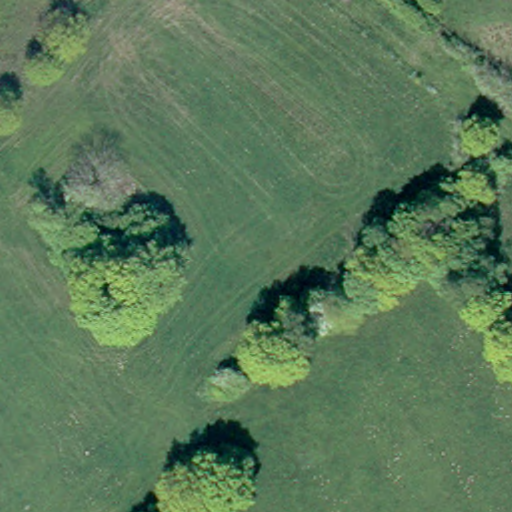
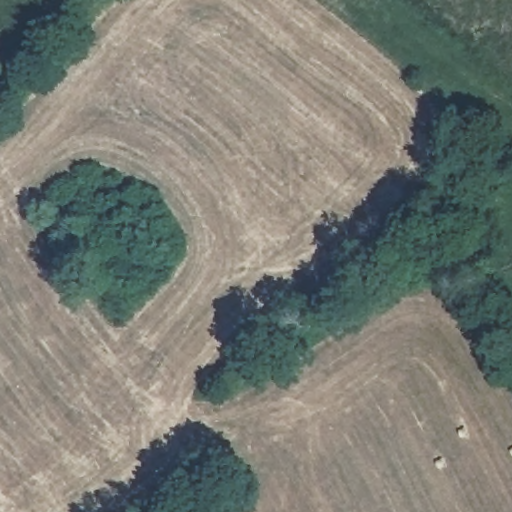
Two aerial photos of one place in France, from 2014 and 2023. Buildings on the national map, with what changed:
unchanged [(158,275),(151,266),(166,254),(173,263),(158,275)]

